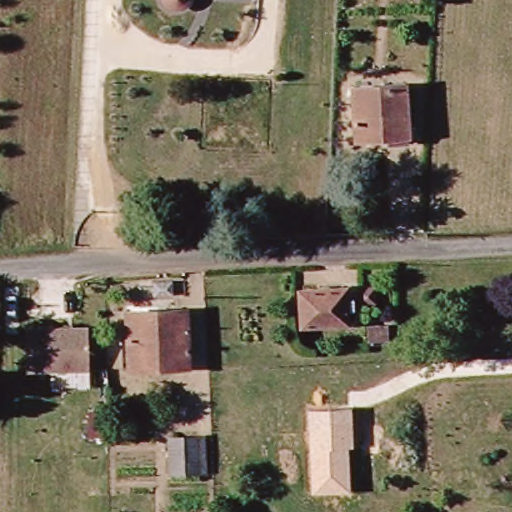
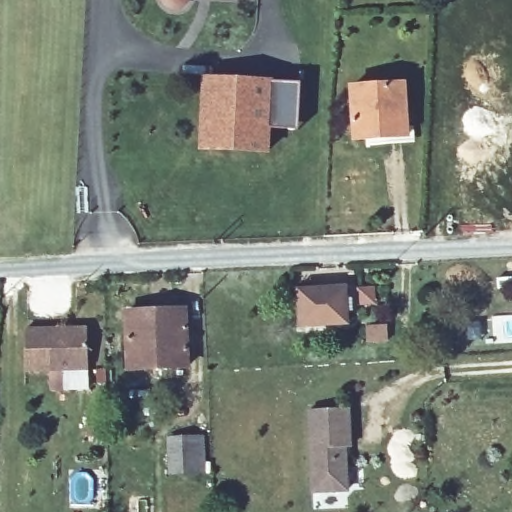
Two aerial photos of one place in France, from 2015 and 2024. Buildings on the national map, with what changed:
new [(300,81),(299,131),(272,130),(271,155),(200,152),(204,76),(300,81)]
unchanged [(348,134),(345,80),(397,76),(401,130),(348,134)]
demolished [(252,270),(252,285),(231,285),(231,270),(252,270)]
unchanged [(342,290),(342,320),(302,320),(302,290),(342,290)]
unchanged [(177,368),(124,369),(123,312),(177,311),(177,368)]
unchanged [(357,340),(355,324),(380,324),(380,340),(357,340)]
unchanged [(28,371),(27,330),(90,328),(91,370),(28,371)]
unchanged [(351,447),(348,447),(349,491),(310,494),(305,408),(350,405),(351,447)]
unchanged [(196,474),(160,475),(160,435),(195,435),(196,474)]

